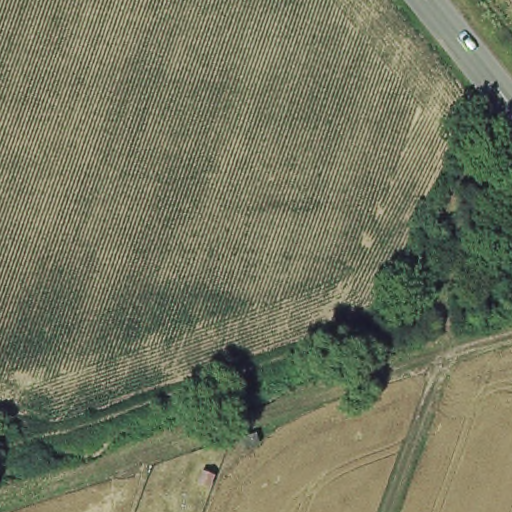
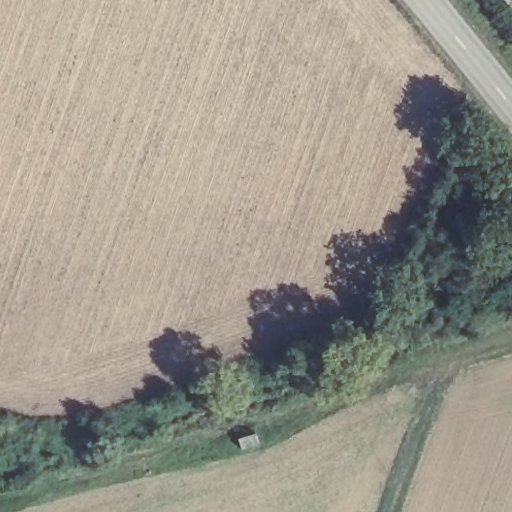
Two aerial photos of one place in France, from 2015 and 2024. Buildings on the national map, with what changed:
unchanged [(246,430),(247,432),(249,441),(232,446),(229,437),(228,436),(246,430)]
unchanged [(192,468),(203,472),(199,485),(188,481),(192,468)]

